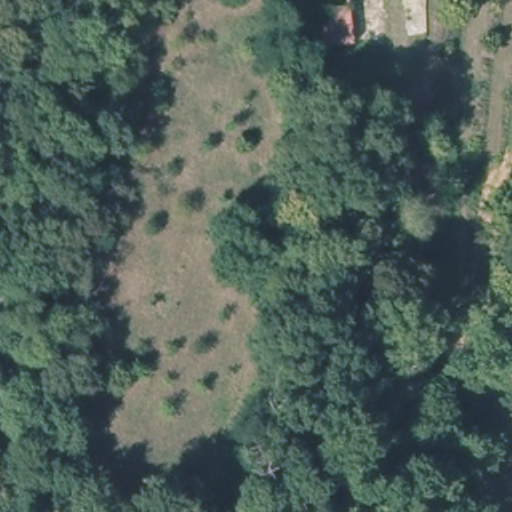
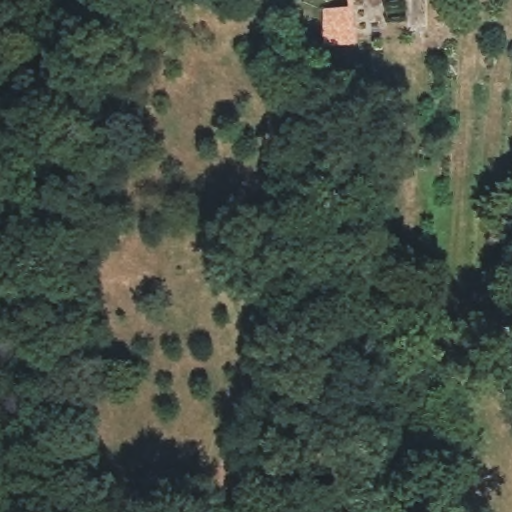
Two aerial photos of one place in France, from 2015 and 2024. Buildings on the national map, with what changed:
unchanged [(328,44),(324,0),(423,0),(426,35),(328,44)]

